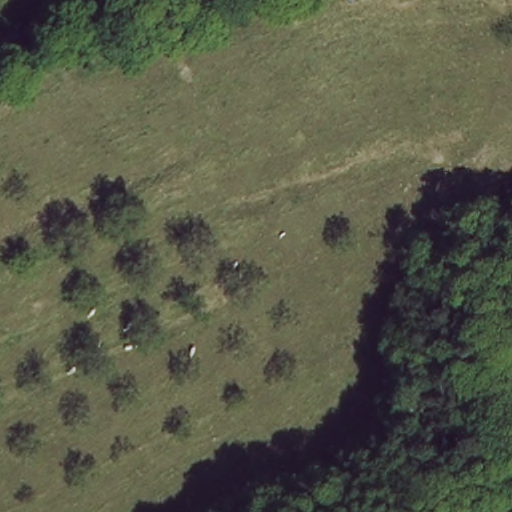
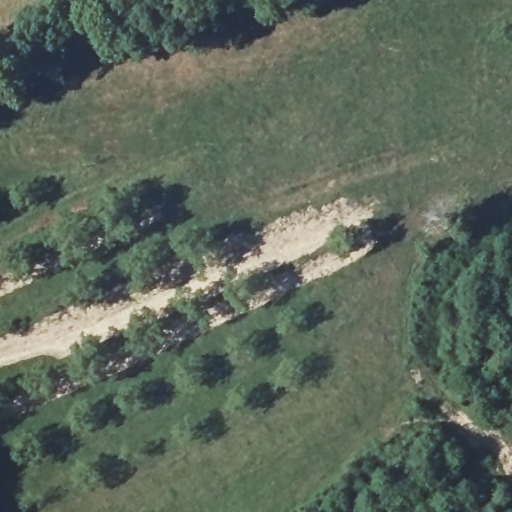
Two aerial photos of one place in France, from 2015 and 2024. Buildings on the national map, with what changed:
[]

